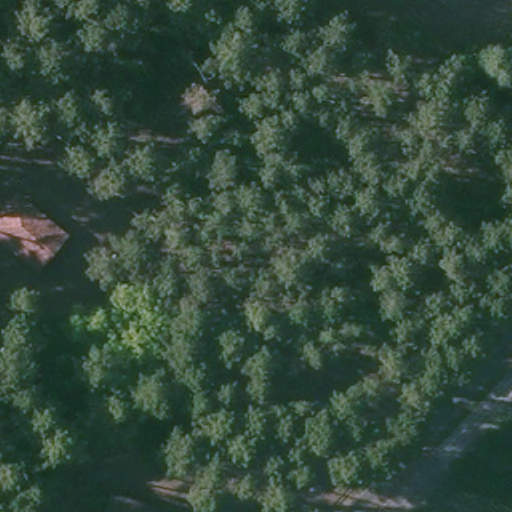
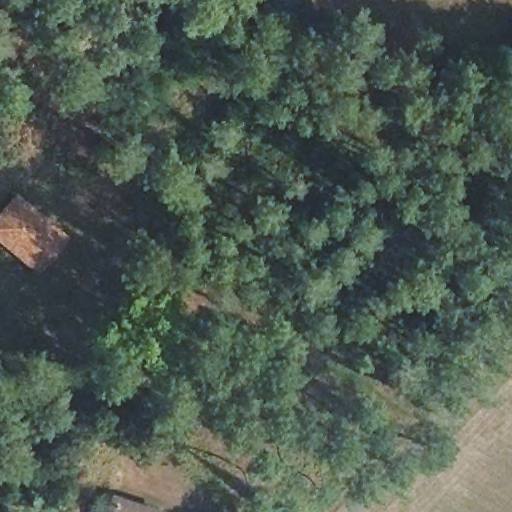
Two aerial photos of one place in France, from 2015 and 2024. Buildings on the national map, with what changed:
unchanged [(0,211),(12,197),(55,236),(32,265),(0,238),(0,211)]
unchanged [(113,502),(143,512),(110,512),(113,502)]

